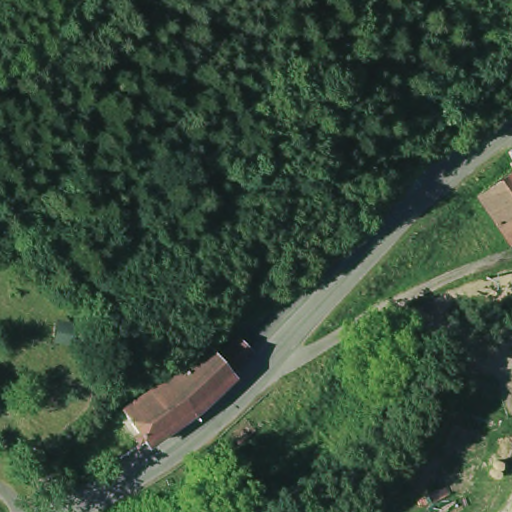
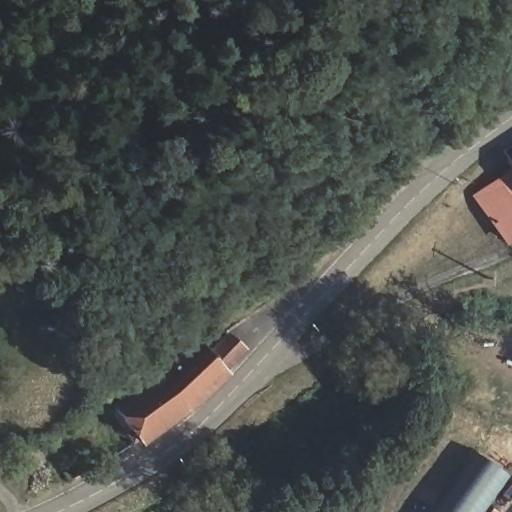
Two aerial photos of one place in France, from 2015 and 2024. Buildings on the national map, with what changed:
unchanged [(512,159),(512,170),(507,162),(512,159)]
unchanged [(493,178),(512,206),(512,226),(497,236),(473,200),(469,193),(493,178)]
unchanged [(159,369),(192,334),(208,351),(229,331),(244,347),(222,365),(224,367),(184,405),(160,370),(159,369)]
unchanged [(184,405),(138,437),(114,403),(160,370),(184,405)]
new [(487,512),(431,512),(477,455),(512,479),(487,512)]

